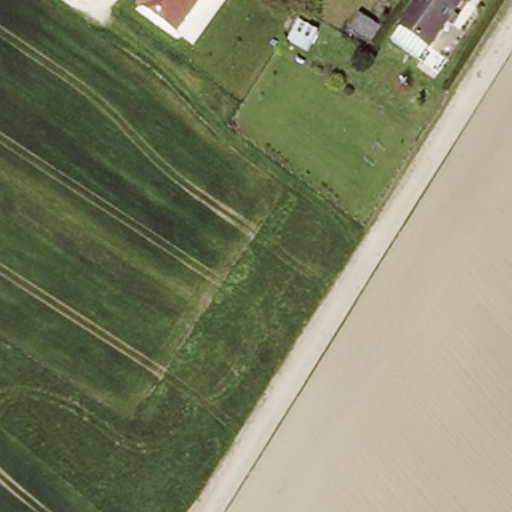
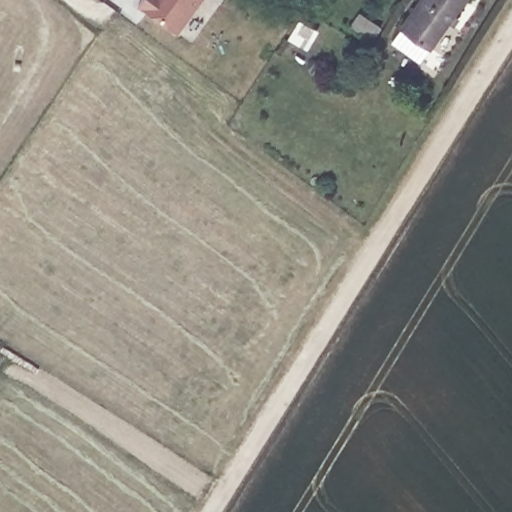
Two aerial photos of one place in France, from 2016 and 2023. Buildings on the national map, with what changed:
unchanged [(140,0),(202,0),(178,35),(137,5),(140,0)]
unchanged [(459,20),(453,29),(447,25),(424,56),(396,35),(421,0),(466,0),(454,16),(459,20)]
unchanged [(349,28),(361,12),(381,27),(371,42),(349,28)]

